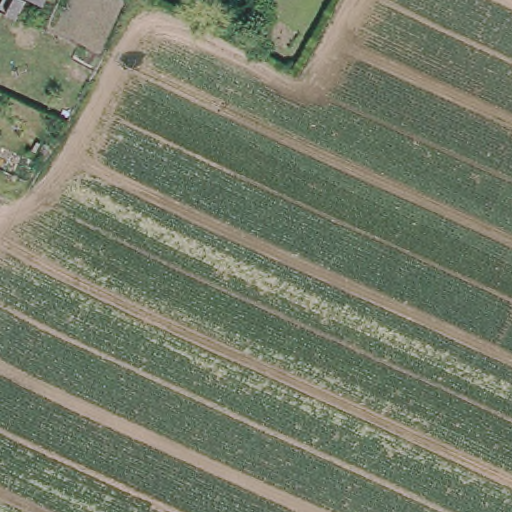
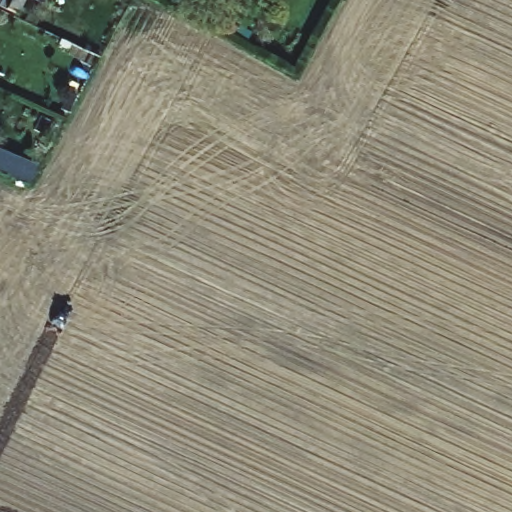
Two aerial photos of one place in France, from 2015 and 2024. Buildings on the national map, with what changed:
unchanged [(16,15),(5,10),(10,0),(23,0),(16,15)]
unchanged [(42,3),(34,0),(43,0),(42,3)]

